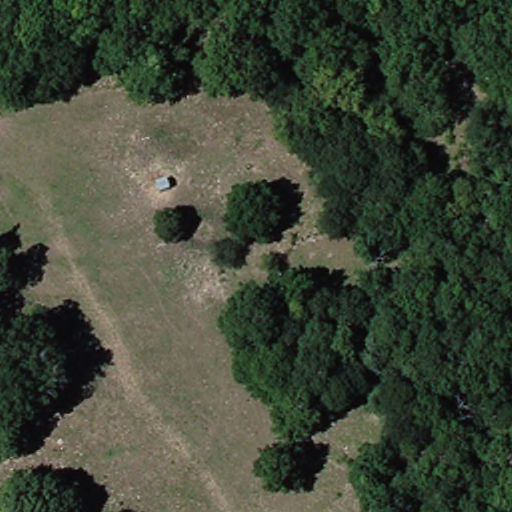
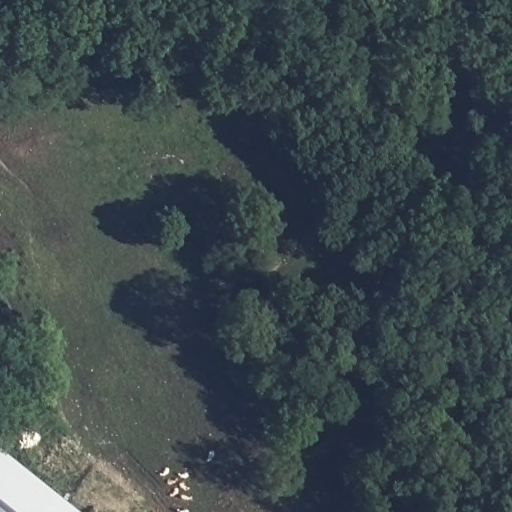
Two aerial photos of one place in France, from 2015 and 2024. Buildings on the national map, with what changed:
new [(81,512),(0,512),(0,447),(81,512)]

